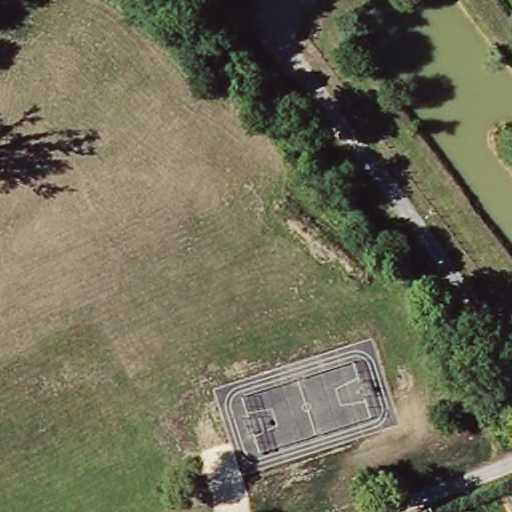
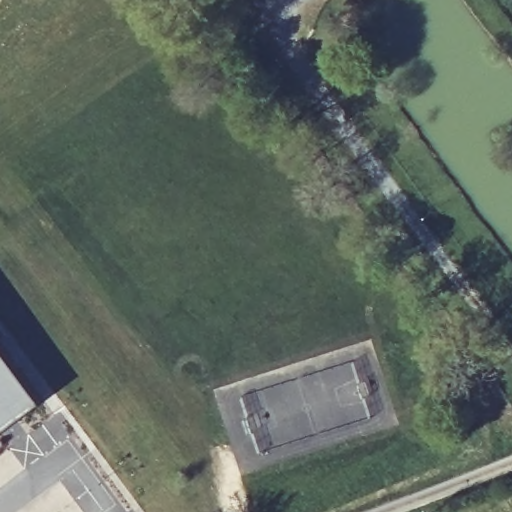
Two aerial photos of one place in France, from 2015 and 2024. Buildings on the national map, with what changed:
new [(40,398),(0,428),(0,343),(40,398)]

